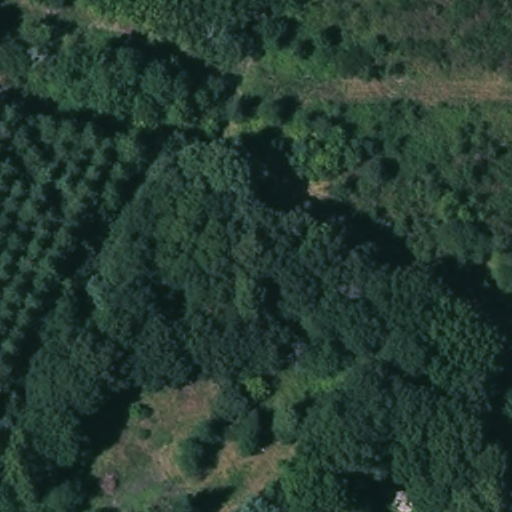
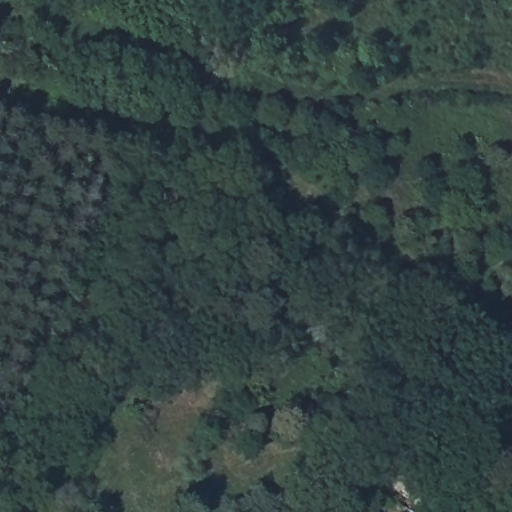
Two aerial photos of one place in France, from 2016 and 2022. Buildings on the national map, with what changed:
unchanged [(486,429),(478,440),(463,430),(470,418),(486,429)]
unchanged [(320,512),(327,502),(342,512),(320,512)]

